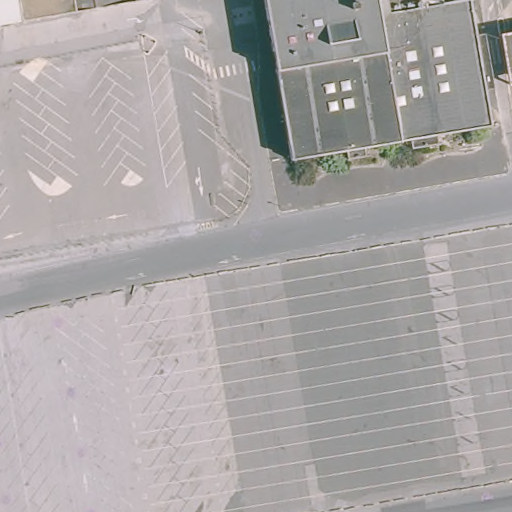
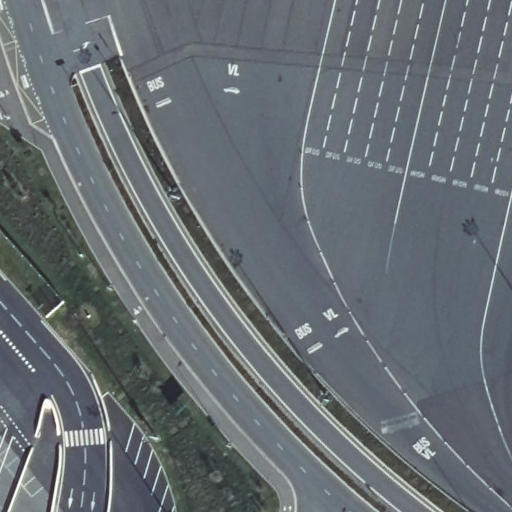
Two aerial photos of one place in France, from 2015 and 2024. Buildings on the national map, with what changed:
demolished [(0,0),(25,0),(27,18),(0,23),(0,0)]
demolished [(27,18),(25,0),(104,0),(105,5),(27,18)]
demolished [(104,0),(134,0),(105,5),(104,0)]
demolished [(433,134),(435,145),(405,150),(403,139),(360,146),(361,156),(343,160),(342,150),(286,159),(261,0),(439,0),(439,3),(460,0),(464,0),(470,36),(482,35),(484,51),(473,52),(478,89),(485,125),(433,134)]
demolished [(498,35),(512,32),(512,83),(507,84),(498,35)]

